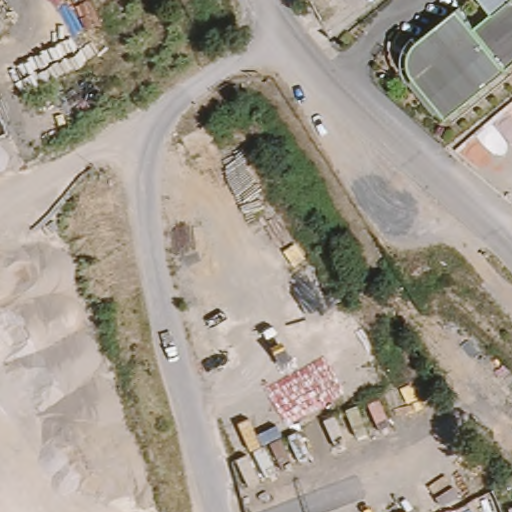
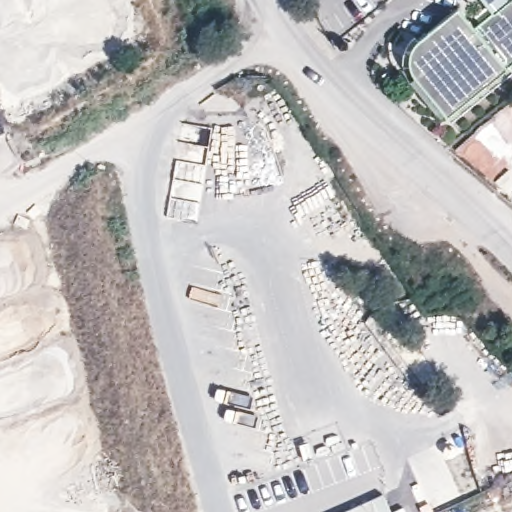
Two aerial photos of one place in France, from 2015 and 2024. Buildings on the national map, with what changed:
unchanged [(412,56),(413,52),(415,48),(424,40),(462,7),(478,26),(497,10),(489,0),(512,0),(512,65),(452,115),(418,75),(414,70),(412,64),(412,56)]
new [(384,494),(392,512),(344,512),(384,494)]

